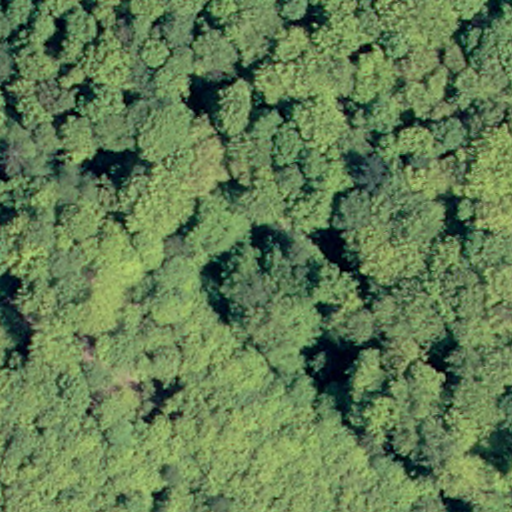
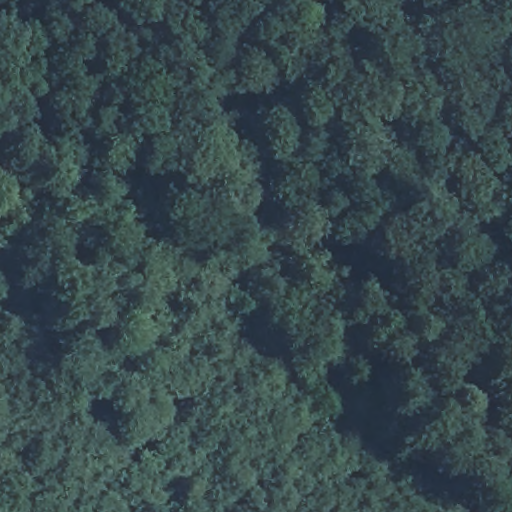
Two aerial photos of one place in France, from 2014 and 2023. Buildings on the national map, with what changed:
unchanged [(132,308),(135,281),(153,284),(149,311),(132,308)]

